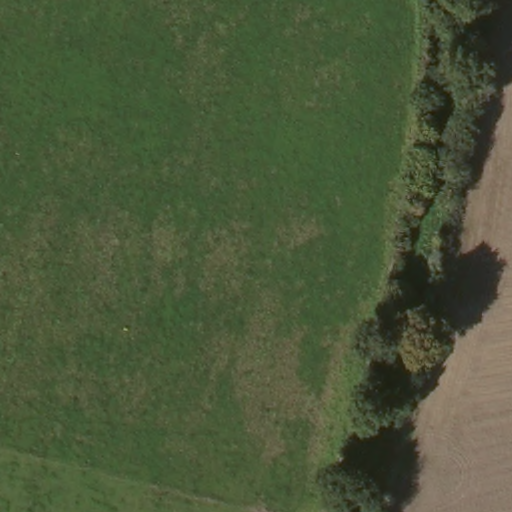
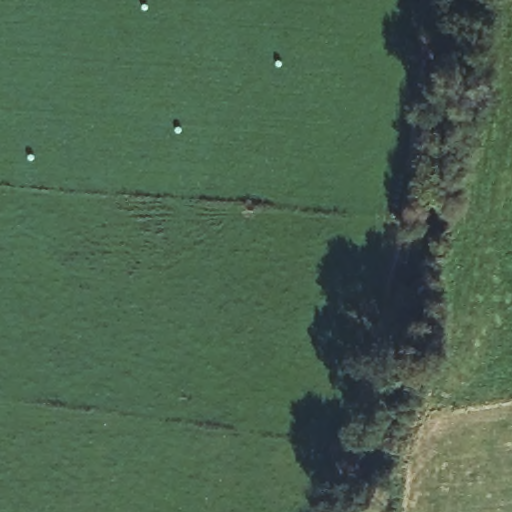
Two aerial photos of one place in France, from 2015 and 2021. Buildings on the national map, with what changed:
[]

